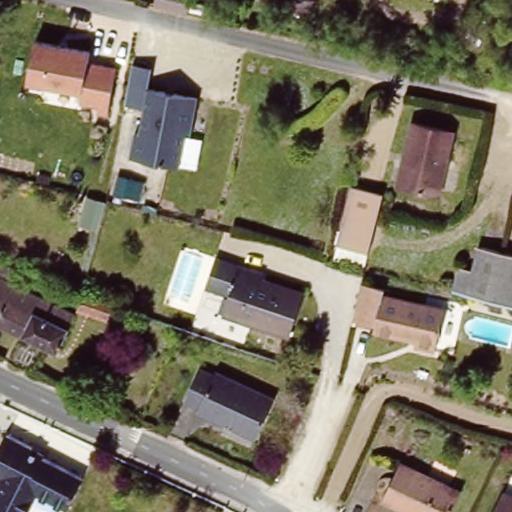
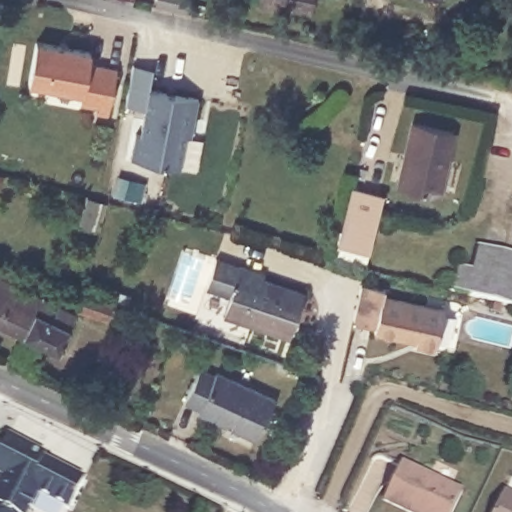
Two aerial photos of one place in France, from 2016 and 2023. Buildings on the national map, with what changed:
unchanged [(257,0),(311,0),(308,14),(256,3),(257,0)]
unchanged [(89,50),(86,64),(118,69),(111,110),(80,103),(80,94),(25,81),(32,39),(89,50)]
unchanged [(196,99),(189,134),(201,139),(196,169),(131,159),(144,90),(196,99)]
unchanged [(410,122),(453,131),(439,193),(398,184),(410,122)]
unchanged [(383,195),(368,258),(335,249),(353,187),(383,195)]
unchanged [(457,261),(469,264),(476,241),(498,247),(486,296),(464,290),(451,287),(457,261)]
unchanged [(486,296),(498,247),(512,250),(512,303),(486,296)]
unchanged [(288,336),(221,313),(228,294),(204,286),(213,258),(248,269),(261,274),(260,279),(302,292),(288,336)]
unchanged [(33,310),(55,322),(67,328),(56,352),(0,325),(0,278),(39,297),(33,310)]
unchanged [(364,278),(388,283),(387,289),(447,304),(438,345),(417,340),(418,335),(377,327),(378,319),(356,314),(364,278)]
unchanged [(104,320),(78,310),(82,297),(109,307),(104,320)]
unchanged [(201,413),(203,407),(190,399),(203,370),(217,377),(219,372),(278,399),(259,439),(201,413)]
unchanged [(0,468),(0,443),(7,429),(33,442),(29,448),(39,453),(41,449),(83,471),(67,501),(38,487),(26,511),(26,512),(0,512),(0,475),(3,469),(0,468)]
unchanged [(449,512),(407,512),(381,499),(399,463),(459,491),(449,512)]
unchanged [(512,494),(512,512),(492,512),(503,489),(512,494)]

